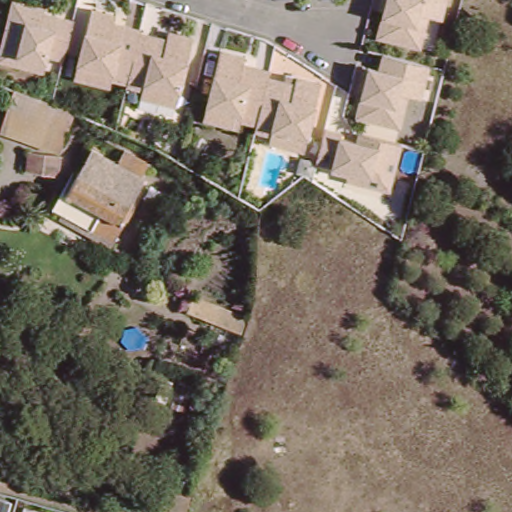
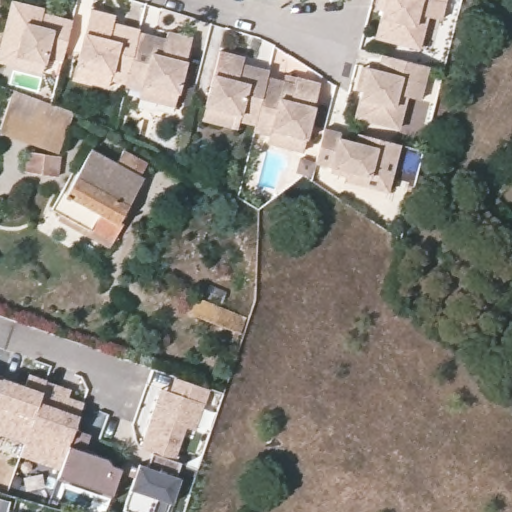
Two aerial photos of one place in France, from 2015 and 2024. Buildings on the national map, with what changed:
unchanged [(0,34),(2,26),(9,0),(43,0),(40,8),(53,11),(55,6),(71,10),(61,48),(45,44),(43,51),(40,61),(0,51),(0,34)]
unchanged [(378,21),(383,1),(377,0),(443,0),(440,10),(427,6),(419,39),(376,28),(378,21)]
unchanged [(73,71),(76,58),(90,3),(115,9),(113,16),(122,19),(139,24),(138,26),(125,76),(110,73),(108,81),(73,71)]
unchanged [(138,91),(141,83),(125,79),(125,76),(138,26),(156,30),(165,33),(167,26),(191,31),(177,86),(173,100),(138,91)]
unchanged [(218,46),(219,44),(243,50),(243,52),(241,57),(251,60),(268,64),(266,71),(253,120),(238,116),(237,121),(201,112),(205,98),(218,46)]
unchanged [(355,112),(356,106),(361,86),(356,85),(361,61),(367,63),(378,66),(381,50),(427,61),(419,95),(406,91),(398,123),(355,112)]
unchanged [(266,136),(268,129),(253,125),(253,120),(266,71),(284,75),(293,78),(295,71),(319,76),(305,131),(301,145),(266,136)]
unchanged [(55,145),(0,126),(0,115),(8,86),(70,107),(55,145)]
unchanged [(347,166),(330,161),(331,156),(314,151),(323,119),(340,123),(339,128),(355,132),(357,124),(367,126),(400,135),(390,172),(388,181),(346,170),(347,166)]
unchanged [(53,169),(21,166),(23,148),(55,152),(53,169)]
unchanged [(109,246),(91,235),(89,240),(53,218),(64,200),(68,201),(92,158),(118,172),(125,160),(148,173),(140,186),(143,189),(109,246)]
unchanged [(240,322),(233,338),(182,317),(188,300),(240,322)]
new [(28,374),(72,389),(70,397),(85,403),(70,447),(109,459),(113,466),(123,469),(115,496),(58,476),(60,470),(20,457),(24,444),(0,436),(0,377),(25,385),(28,374)]
new [(131,490),(141,464),(149,467),(154,452),(141,449),(161,389),(171,392),(177,376),(211,387),(197,432),(188,429),(177,460),(183,462),(178,476),(183,477),(175,504),(158,498),(153,512),(132,512),(125,510),(131,490)]
demolished [(170,441),(172,431),(152,424),(161,390),(163,391),(166,378),(199,388),(196,400),(183,445),(170,441)]

